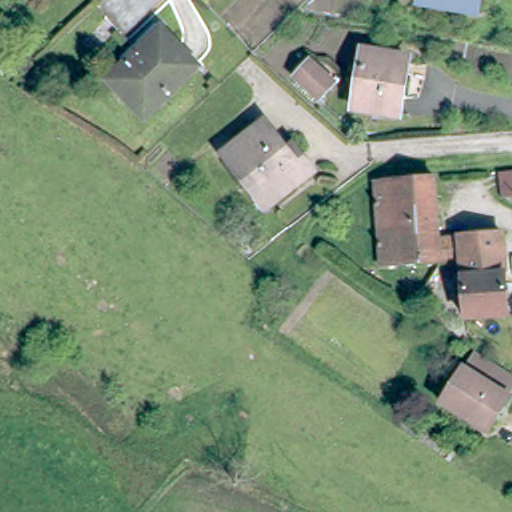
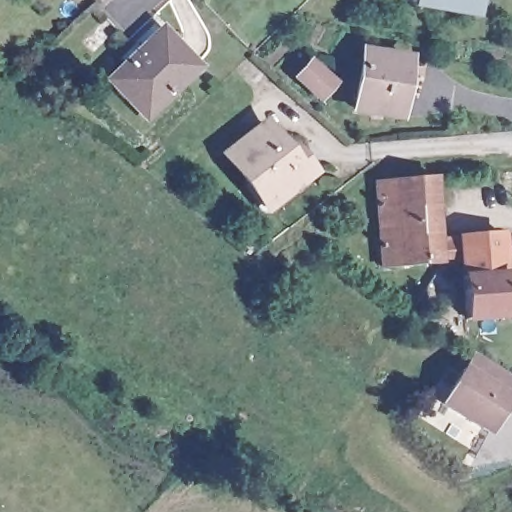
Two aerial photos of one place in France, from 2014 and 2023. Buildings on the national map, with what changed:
unchanged [(474,6),(439,0),(475,0),(474,6)]
unchanged [(200,71),(171,98),(169,95),(144,118),(126,100),(129,98),(112,80),(129,64),(131,66),(165,34),(200,71)]
unchanged [(362,50),(404,57),(395,114),(352,107),(362,50)]
unchanged [(336,91),(322,106),(297,83),(312,67),(336,91)]
unchanged [(295,154),(299,151),(314,170),(270,204),(228,150),(267,120),(295,154)]
unchanged [(446,253),(444,254),(386,259),(380,174),(439,170),(444,230),(446,253)]
unchanged [(501,205),(500,180),(512,179),(512,204),(501,205)]
unchanged [(470,310),(465,254),(443,256),(444,254),(446,253),(444,230),(506,225),(512,302),(512,308),(470,310)]
unchanged [(505,394),(484,429),(439,397),(459,366),(462,366),(472,347),(512,373),(512,377),(504,391),(505,394)]

